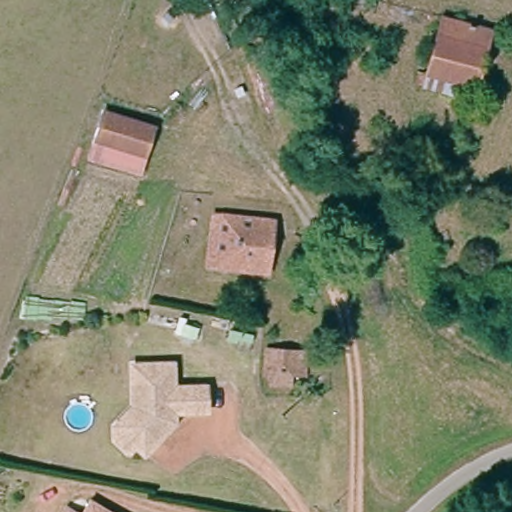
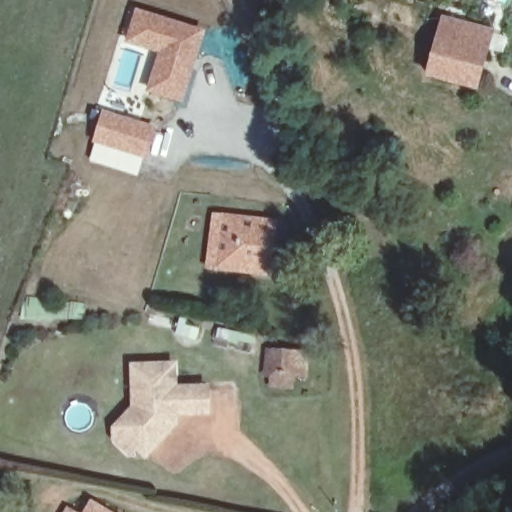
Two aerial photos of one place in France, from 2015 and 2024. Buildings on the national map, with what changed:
new [(135,6),(206,29),(183,104),(144,92),(157,52),(123,42),(135,6)]
unchanged [(474,87),(428,74),(443,20),(489,32),(474,87)]
unchanged [(95,143),(106,112),(154,129),(144,160),(95,143)]
unchanged [(272,222),(267,272),(208,266),(214,217),(272,222)]
unchanged [(269,350),(309,352),(308,378),(293,378),(292,388),(267,387),(269,350)]
unchanged [(109,439),(110,425),(119,415),(129,405),(130,363),(171,364),(171,388),(188,388),(204,388),(203,413),(188,413),(171,413),(170,423),(138,454),(130,445),(122,452),(109,439)]
unchanged [(82,498),(110,512),(76,512),(82,498)]
unchanged [(59,507),(69,512),(57,512),(59,507)]

